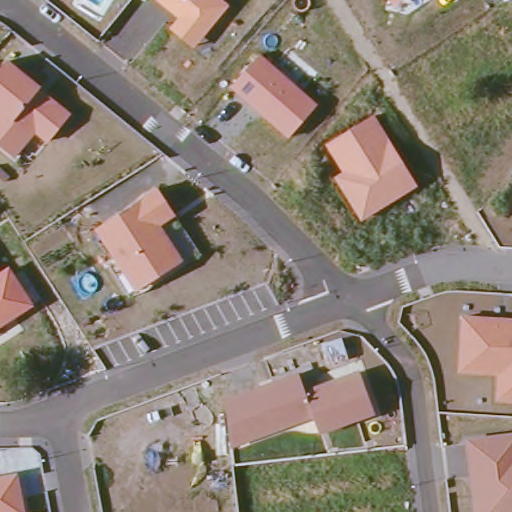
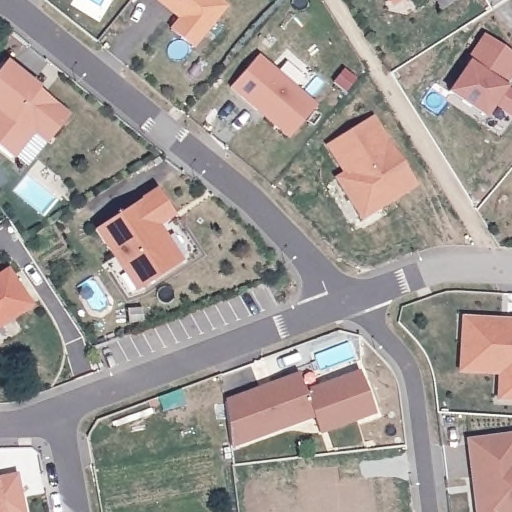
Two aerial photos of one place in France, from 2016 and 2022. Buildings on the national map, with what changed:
unchanged [(169,28),(178,17),(157,0),(224,0),(230,4),(193,49),(169,28)]
unchanged [(386,0),(398,0),(390,5),(386,0)]
new [(469,63),(467,61),(485,34),(512,53),(512,72),(507,79),(501,76),(497,81),(512,92),(512,116),(494,103),(485,116),(449,91),(469,63)]
unchanged [(260,54),(318,104),(287,139),(230,88),(260,54)]
unchanged [(0,63),(4,58),(37,85),(68,112),(45,142),(32,132),(12,156),(0,147),(0,63)]
unchanged [(331,176),(340,170),(322,142),(372,112),(415,183),(358,219),(331,176)]
unchanged [(92,227),(155,184),(174,214),(160,224),(182,258),(132,290),(92,227)]
unchanged [(32,303),(0,324),(0,269),(7,264),(32,303)]
unchanged [(458,312),(512,316),(512,399),(493,398),(495,372),(455,371),(458,312)]
unchanged [(223,397),(297,369),(302,387),(357,368),(372,411),(317,433),(309,414),(228,444),(223,397)]
unchanged [(512,430),(512,512),(473,512),(465,437),(512,430)]
unchanged [(24,512),(0,512),(0,474),(15,471),(24,512)]

